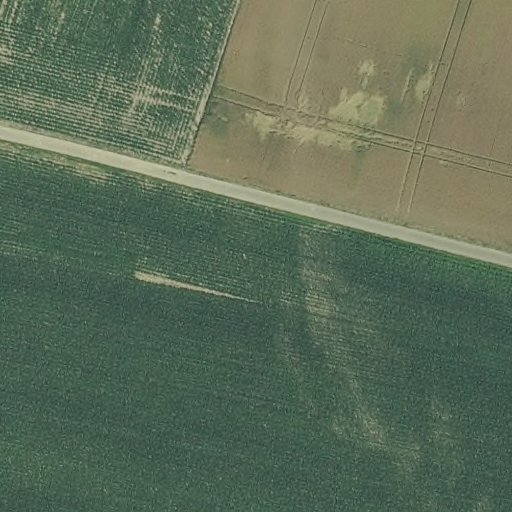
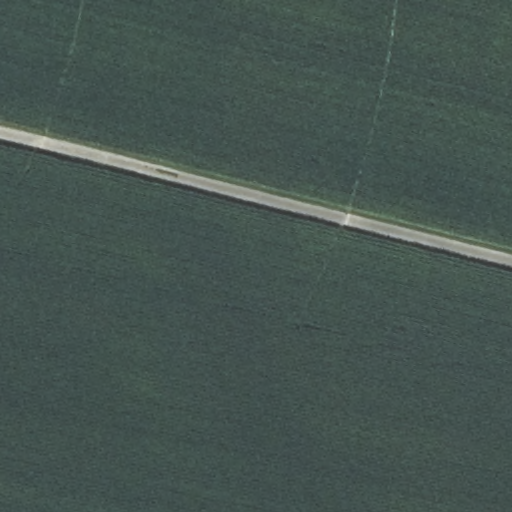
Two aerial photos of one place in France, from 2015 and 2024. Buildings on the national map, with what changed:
[]

